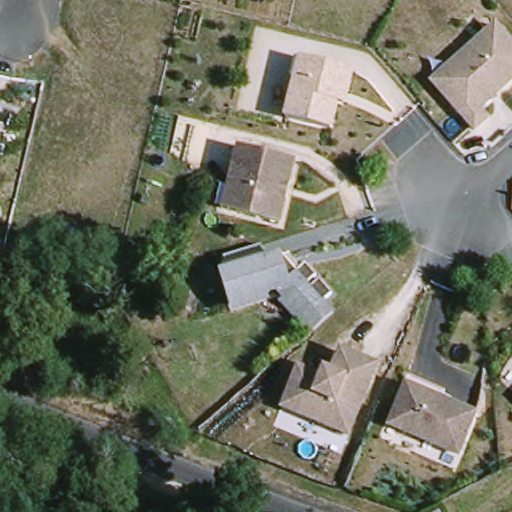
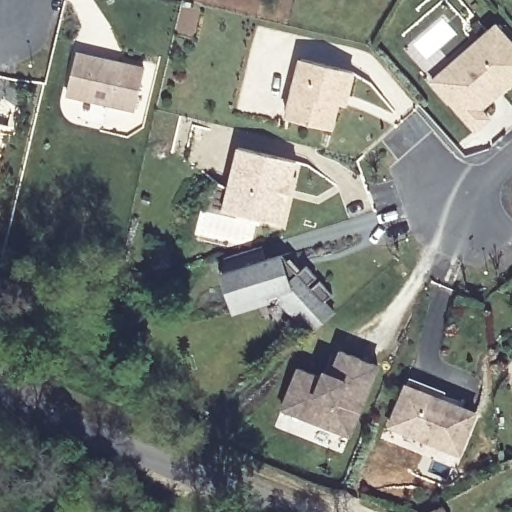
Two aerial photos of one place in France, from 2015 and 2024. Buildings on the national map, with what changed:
unchanged [(481,111),(490,120),(476,131),(452,104),(433,83),(465,56),(497,26),(512,43),(512,84),(500,95),(493,100),(481,111)]
new [(79,54),(145,70),(135,113),(69,96),(79,54)]
unchanged [(339,105),(332,131),(287,120),(302,61),(355,74),(349,97),(346,106),(339,105)]
unchanged [(0,129),(0,125),(1,126),(0,129)]
unchanged [(283,226),(224,212),(240,149),(298,163),(292,188),(288,202),(283,226)]
unchanged [(225,260),(255,251),(264,248),(268,262),(284,257),(300,275),(308,267),(319,279),(310,287),(313,290),(322,282),(335,297),(326,304),(336,315),(316,333),(280,293),(270,297),(271,302),(235,314),(222,277),(230,274),(225,260)]
unchanged [(380,368),(352,438),(285,411),(300,371),(320,378),(327,373),(333,376),(343,353),(380,368)]
unchanged [(477,415),(461,456),(392,428),(408,387),(477,415)]

